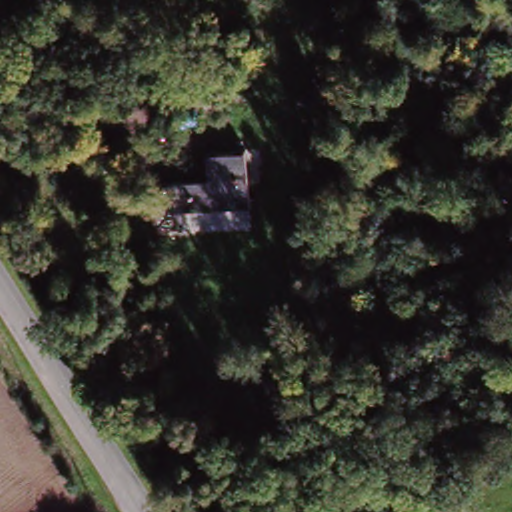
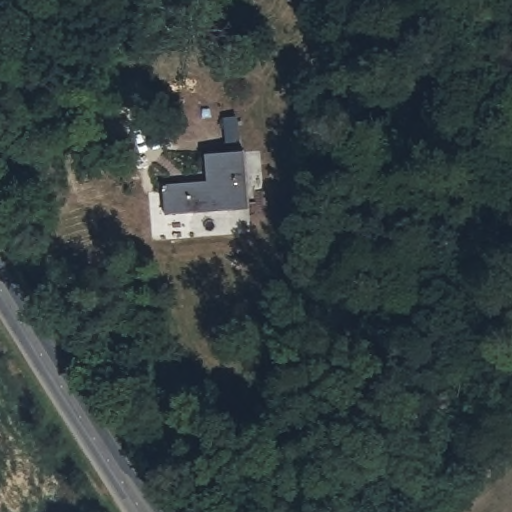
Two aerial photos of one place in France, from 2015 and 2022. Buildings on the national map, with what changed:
unchanged [(245,151),(250,212),(166,217),(164,184),(205,181),(203,155),(245,151)]

